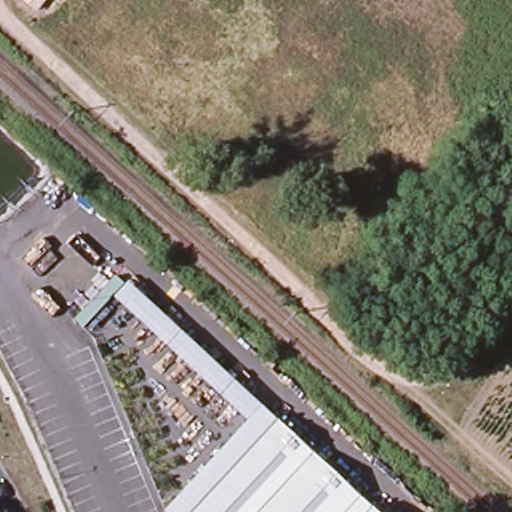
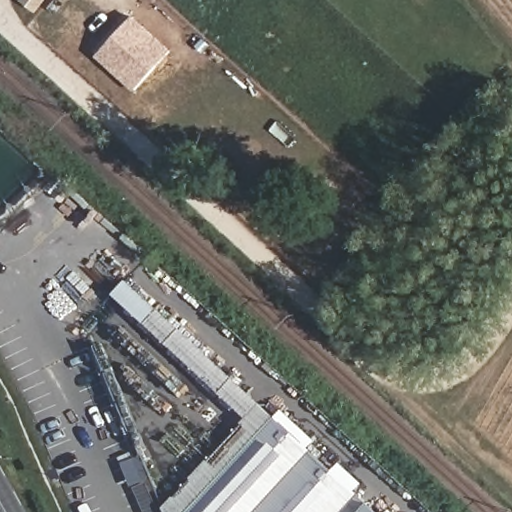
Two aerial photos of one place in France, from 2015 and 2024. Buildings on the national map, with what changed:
unchanged [(22,0),(45,0),(36,11),(22,0)]
new [(173,50),(137,90),(98,55),(134,15),(173,50)]
unchanged [(118,274),(271,418),(184,512),(164,512),(162,509),(240,422),(112,301),(87,326),(77,317),(118,274)]
unchanged [(271,418),(377,512),(184,512),(271,418)]

